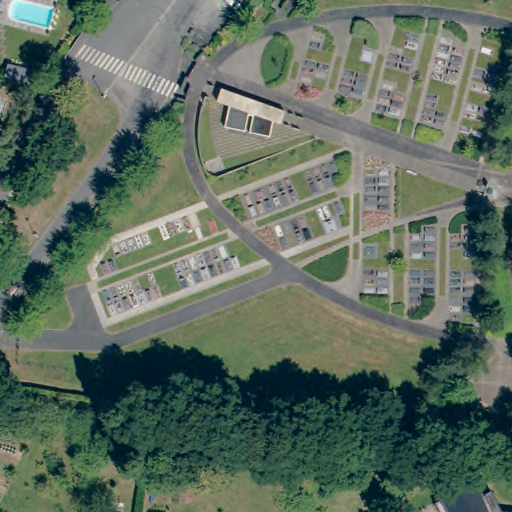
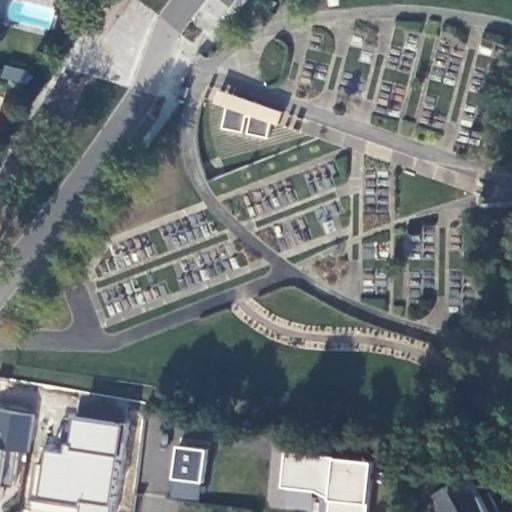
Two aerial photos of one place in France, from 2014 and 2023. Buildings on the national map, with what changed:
unchanged [(203,56),(197,64),(195,62),(199,57),(203,54),(209,59),(208,60),(203,56)]
unchanged [(32,72),(29,84),(4,78),(8,66),(32,72)]
unchanged [(183,91),(180,90),(183,85),(186,78),(188,79),(183,91)]
unchanged [(178,99),(185,100),(190,88),(192,89),(187,104),(177,100),(178,99)]
unchanged [(205,102),(203,111),(201,120),(200,129),(199,137),(200,146),(202,155),(204,164),(207,172),(211,180),(295,147),(295,149),(210,182),(205,173),(203,164),(200,155),(199,146),(198,137),(199,129),(199,120),(201,110),(204,102),(205,97),(209,99),(209,100),(207,100),(205,102)]
demolished [(483,196),(482,196),(488,184),(488,185),(483,196)]
new [(38,462),(56,465),(59,449),(68,451),(73,415),(127,425),(114,512),(81,512),(82,507),(33,500),(33,491),(38,462)]
new [(185,450),(212,450),(212,481),(185,481),(185,450)]
new [(339,458),(374,461),(370,502),(369,512),(331,512),(332,500),(317,490),(283,486),(288,453),(339,458)]
unchanged [(435,505),(443,501),(439,493),(473,477),(481,495),(489,490),(501,512),(438,512),(435,505)]

